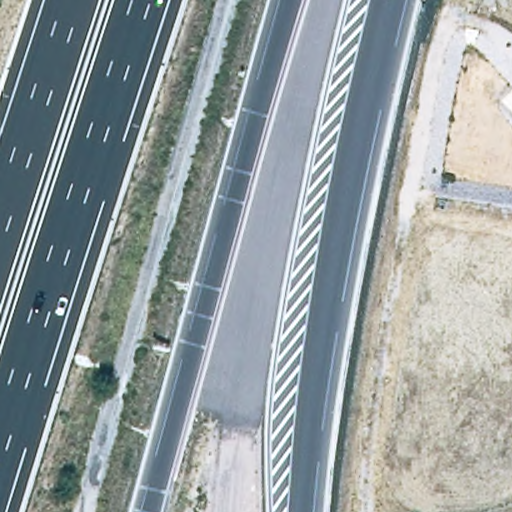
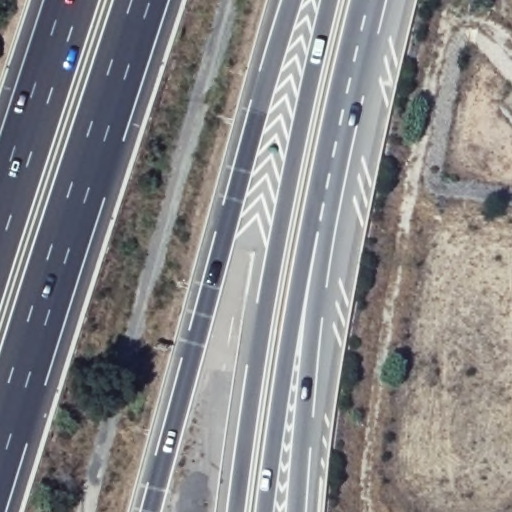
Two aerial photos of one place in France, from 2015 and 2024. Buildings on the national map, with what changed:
[]

